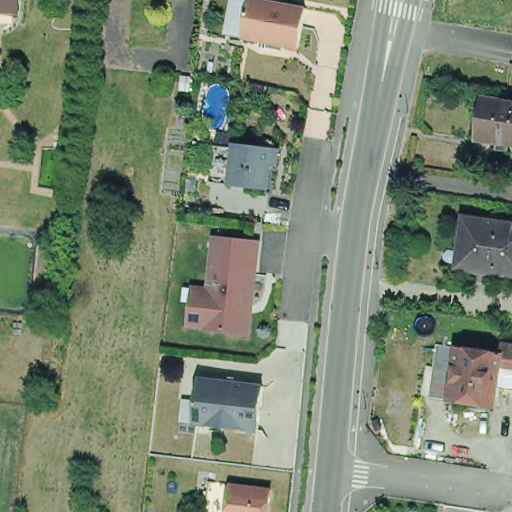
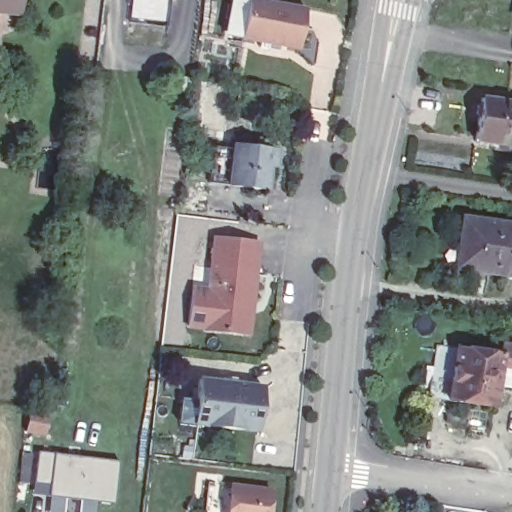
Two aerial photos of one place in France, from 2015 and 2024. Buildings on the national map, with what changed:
unchanged [(0,0),(24,0),(24,4),(24,23),(0,22),(0,0)]
new [(131,25),(133,0),(170,0),(167,29),(131,25)]
unchanged [(247,0),(260,0),(304,9),(297,47),(240,36),(247,0)]
unchanged [(474,141),(480,101),(512,105),(512,147),(474,141)]
unchanged [(234,147),(279,151),(277,169),(270,169),(267,194),(227,189),(234,147)]
unchanged [(460,215),(512,222),(512,273),(457,265),(454,264),(457,240),(460,215)]
unchanged [(210,293),(217,241),(255,245),(262,245),(257,274),(250,338),(205,333),(205,331),(190,329),(192,305),(194,292),(210,293)]
unchanged [(452,397),(460,347),(505,353),(505,351),(503,350),(505,342),(512,343),(512,368),(503,367),(497,405),(452,397)]
unchanged [(264,385),(257,432),(193,425),(197,377),(264,385)]
new [(115,505),(50,498),(52,486),(35,484),(39,453),(55,455),(119,461),(115,505)]
unchanged [(265,512),(223,512),(227,485),(267,489),(265,512)]

